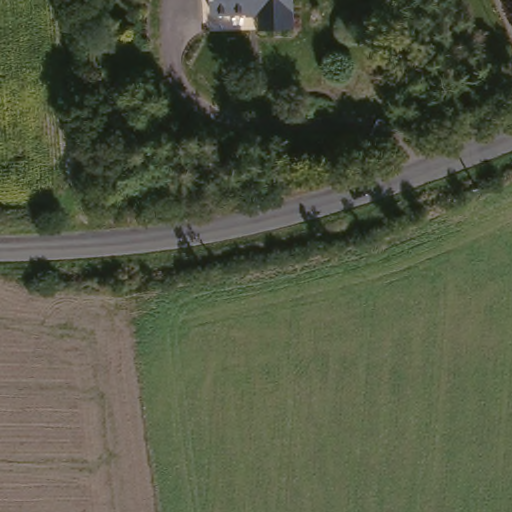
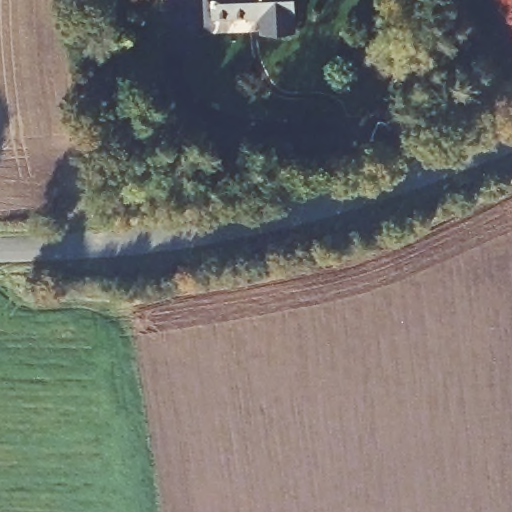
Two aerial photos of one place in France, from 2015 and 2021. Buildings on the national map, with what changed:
unchanged [(304,25),(271,27),(270,11),(224,13),(224,0),(303,0),(304,25)]

